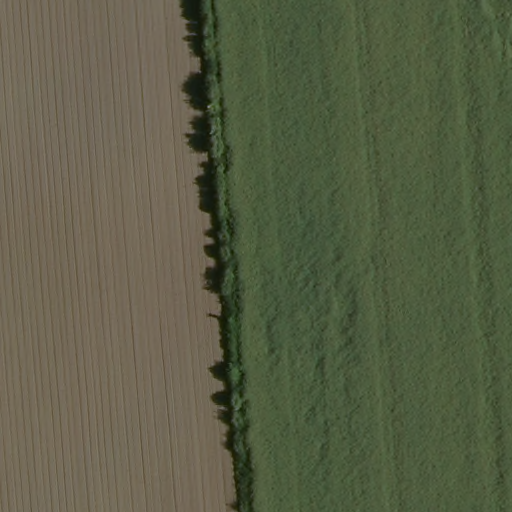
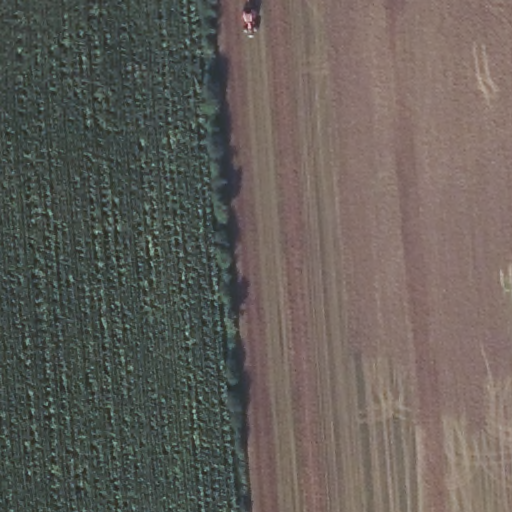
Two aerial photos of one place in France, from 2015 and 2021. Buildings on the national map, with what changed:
[]

